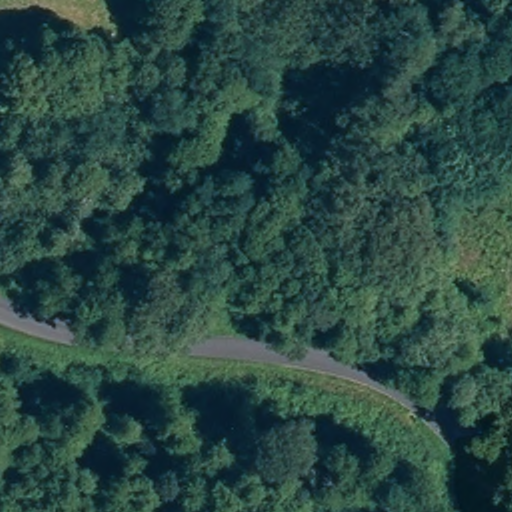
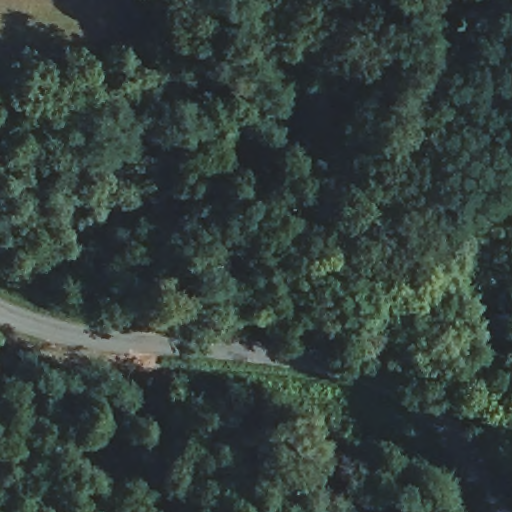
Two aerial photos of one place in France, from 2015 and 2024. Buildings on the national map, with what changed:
[]

